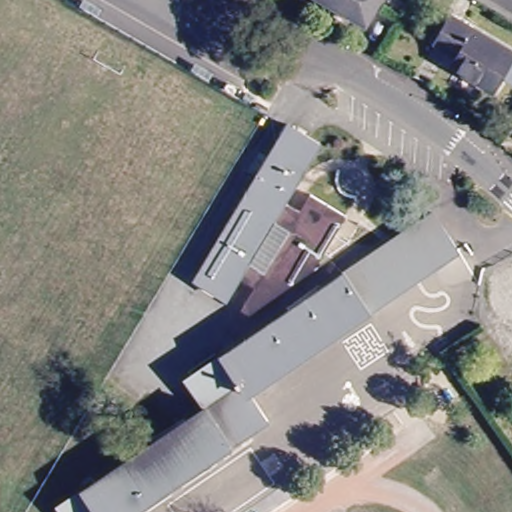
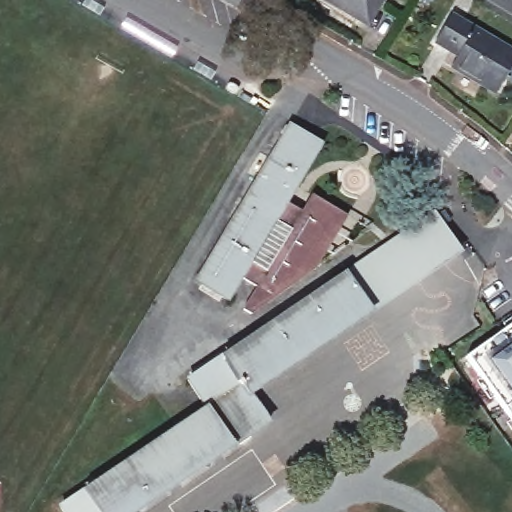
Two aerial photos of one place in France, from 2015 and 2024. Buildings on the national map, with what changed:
unchanged [(334,6),(336,2),(334,0),(377,0),(363,22),(334,6)]
unchanged [(492,91),(450,66),(459,50),(437,37),(451,14),(512,50),(512,80),(501,74),(492,91)]
unchanged [(320,262),(250,312),(242,306),(255,283),(240,272),(225,295),(195,276),(256,176),(266,159),(289,121),(319,140),(285,197),(301,207),(311,191),(348,214),(371,227),(320,262)]
unchanged [(59,506),(205,408),(186,379),(435,212),(459,250),(248,392),(267,420),(129,512),(62,512),(59,506)]
demolished [(512,305),(512,331),(500,313),(512,305)]
new [(512,424),(465,357),(512,324),(512,424)]

